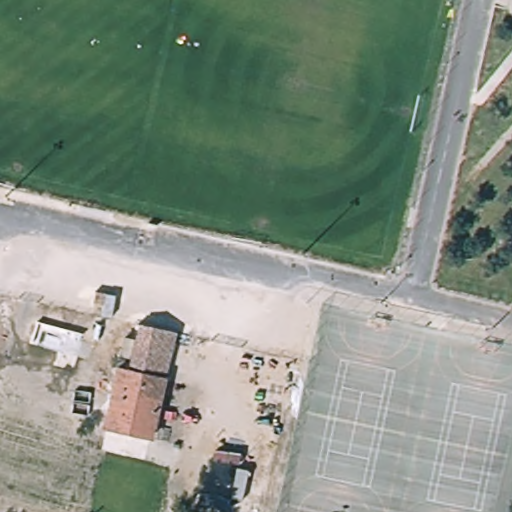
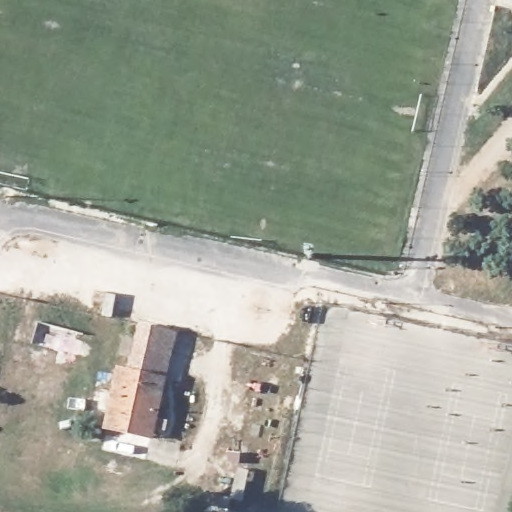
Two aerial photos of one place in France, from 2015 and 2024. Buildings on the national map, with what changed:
unchanged [(136,433),(115,428),(128,369),(136,371),(148,325),(183,332),(162,429),(160,438),(136,433)]
unchanged [(137,356),(128,355),(132,338),(141,340),(137,356)]

